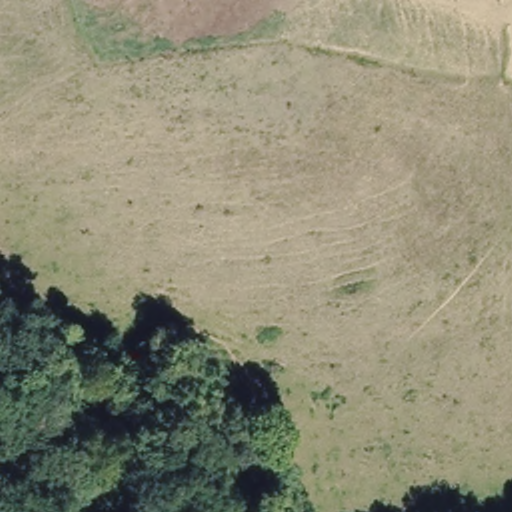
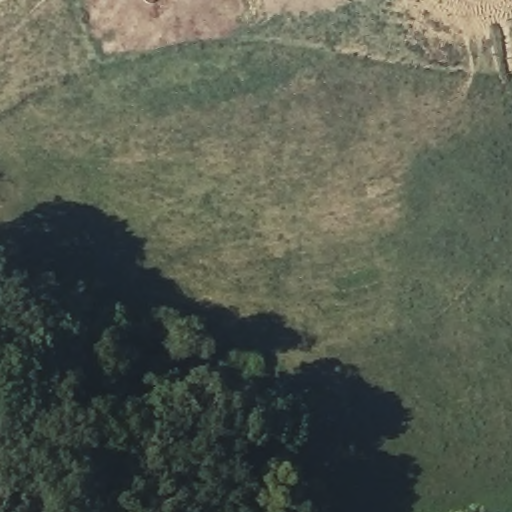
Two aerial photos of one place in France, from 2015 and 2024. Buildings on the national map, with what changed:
[]

